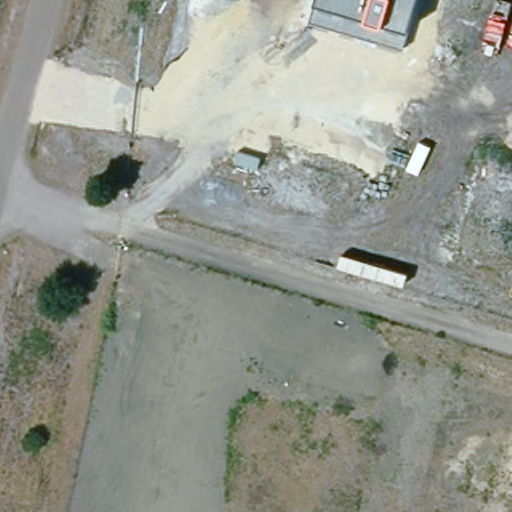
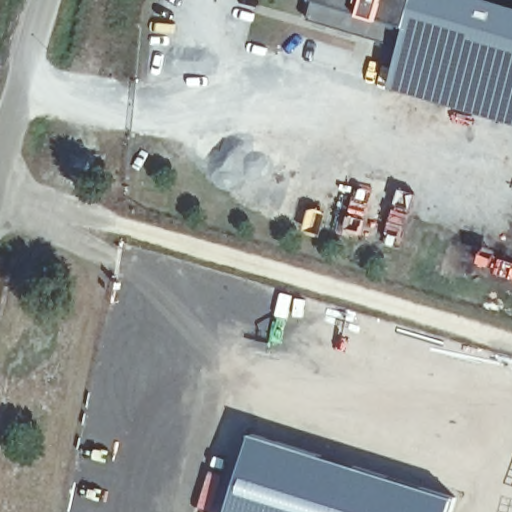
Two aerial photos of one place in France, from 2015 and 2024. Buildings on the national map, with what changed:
unchanged [(409,27),(401,48),(310,20),(316,0),(417,0),(409,27)]
new [(401,48),(409,27),(417,0),(490,0),(512,6),(512,121),(392,86),(401,48)]
new [(458,496),(453,512),(229,512),(252,432),(458,496)]

